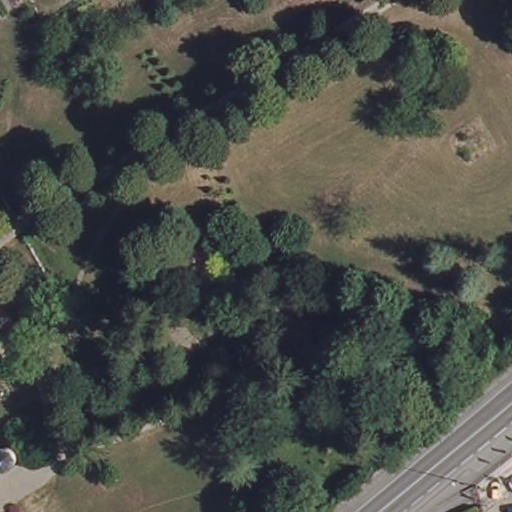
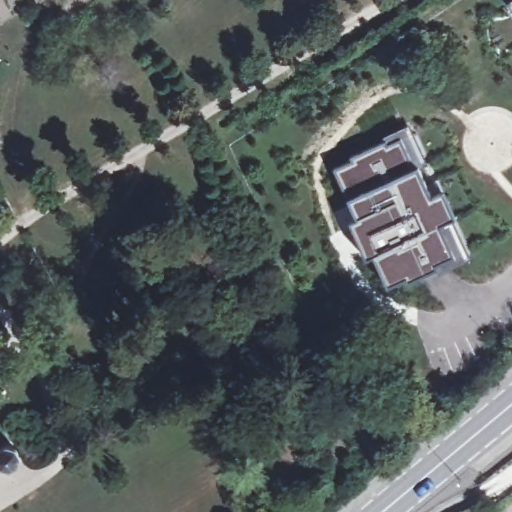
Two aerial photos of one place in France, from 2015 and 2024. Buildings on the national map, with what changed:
new [(505,7),(512,2),(512,18),(505,7)]
new [(327,170),(345,162),(343,158),(408,129),(464,251),(380,289),(365,256),(359,259),(343,225),(350,222),(327,170)]
unchanged [(11,440),(14,440),(17,440),(20,442),(22,445),(24,447),(25,450),(24,454),(22,457),(20,459),(17,460),(14,461),(10,460),(7,458),(5,456),(4,453),(4,449),(0,452),(0,431),(7,442),(11,440)]

